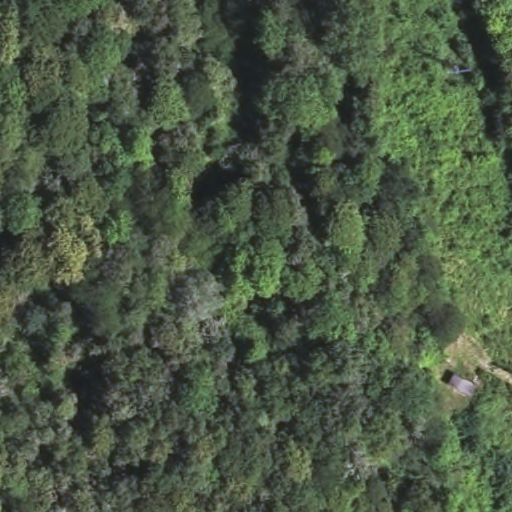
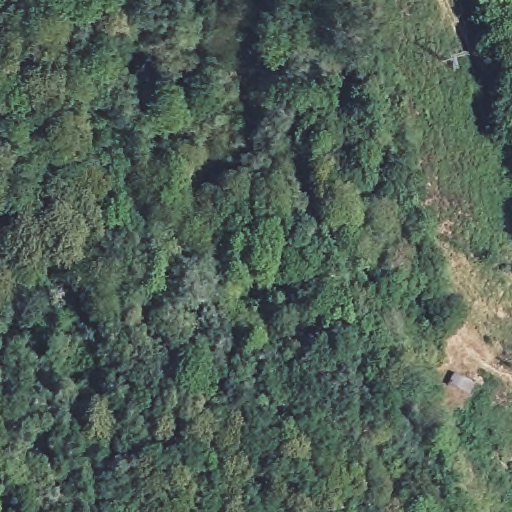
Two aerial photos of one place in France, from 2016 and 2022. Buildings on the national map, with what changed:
unchanged [(471,383),(464,397),(445,387),(449,374),(471,383)]

